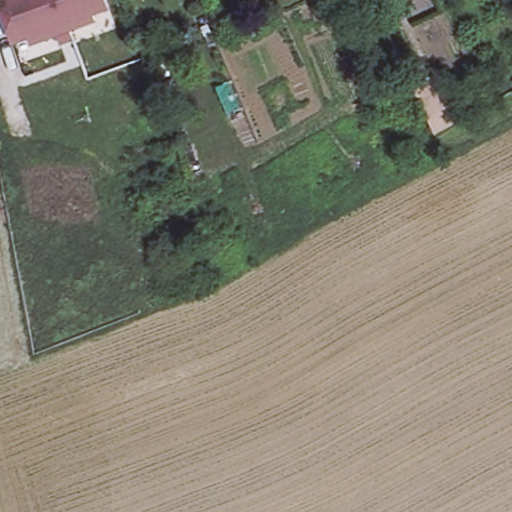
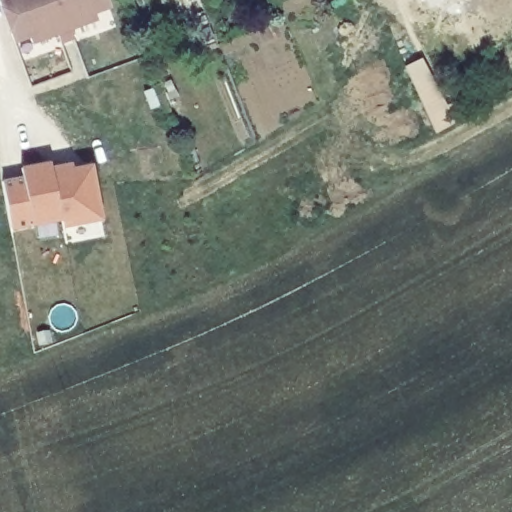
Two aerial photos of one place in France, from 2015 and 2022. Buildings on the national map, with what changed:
unchanged [(92,13),(94,20),(69,29),(71,38),(58,41),(56,33),(29,41),(28,35),(12,40),(0,5),(0,0),(105,0),(108,8),(92,13)]
unchanged [(444,107),(456,103),(464,122),(434,136),(416,93),(434,84),(444,107)]
new [(10,230),(1,179),(22,176),(20,166),(52,161),(53,166),(74,163),(75,167),(94,164),(104,221),(61,229),(60,221),(33,227),(10,230)]

